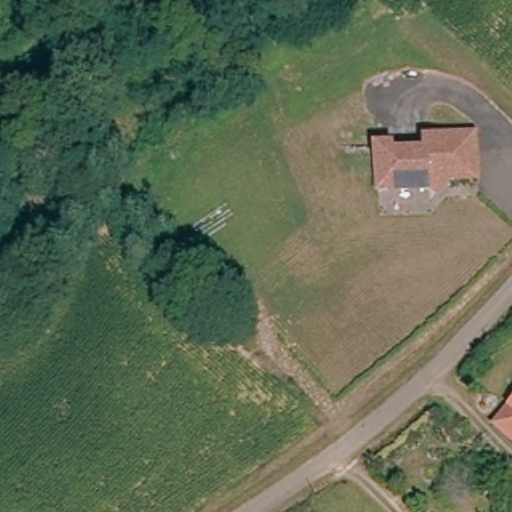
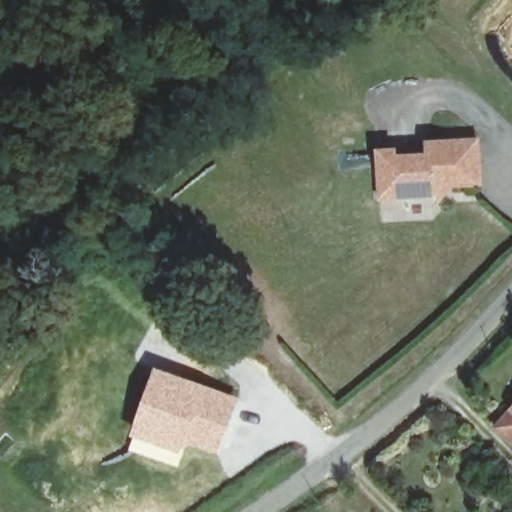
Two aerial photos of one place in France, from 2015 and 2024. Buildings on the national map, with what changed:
unchanged [(434,195),(384,201),(380,154),(395,152),(395,160),(429,157),(428,143),(478,137),(482,181),(453,184),(446,194),(434,195)]
new [(131,438),(129,437),(153,366),(239,397),(217,454),(186,444),(177,466),(127,450),(131,438)]
unchanged [(512,417),(512,436),(503,430),(512,417)]

